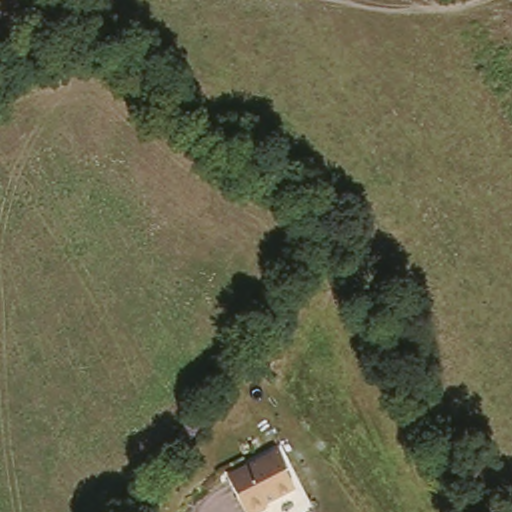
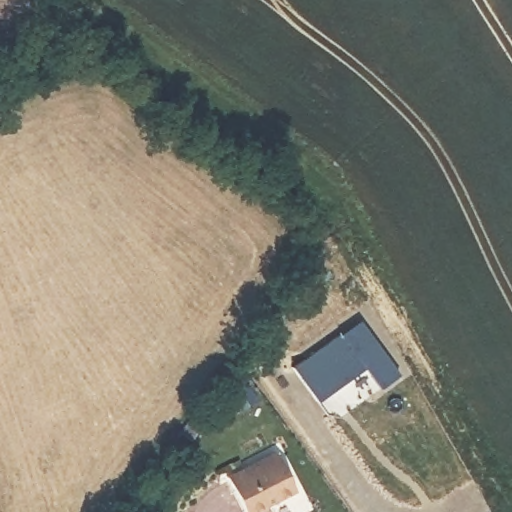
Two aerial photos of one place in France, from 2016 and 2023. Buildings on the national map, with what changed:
new [(397,376),(379,388),(364,368),(318,402),(293,366),(359,321),(397,376)]
unchanged [(192,417),(206,395),(218,402),(203,425),(192,417)]
unchanged [(275,461),(294,497),(274,509),(268,512),(241,512),(227,487),(275,461)]
unchanged [(140,487),(153,472),(168,484),(157,499),(140,487)]

